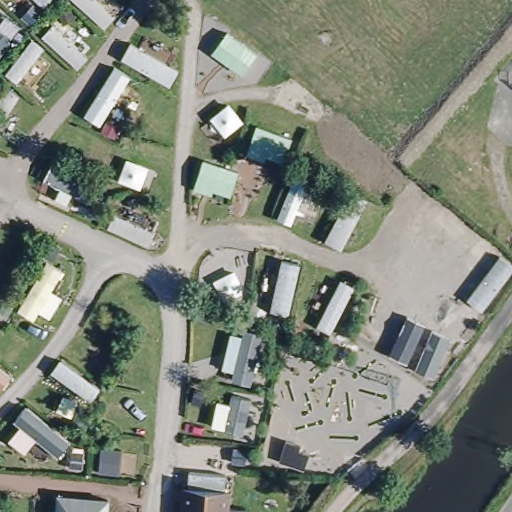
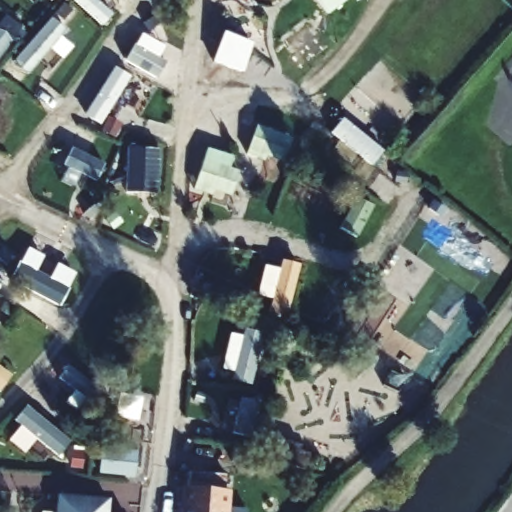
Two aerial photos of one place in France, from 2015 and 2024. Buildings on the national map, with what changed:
unchanged [(225,474),(223,490),(227,491),(225,512),(182,512),(182,502),(185,502),(188,471),(225,474)]
unchanged [(103,500),(102,512),(51,512),(52,495),(103,500)]

